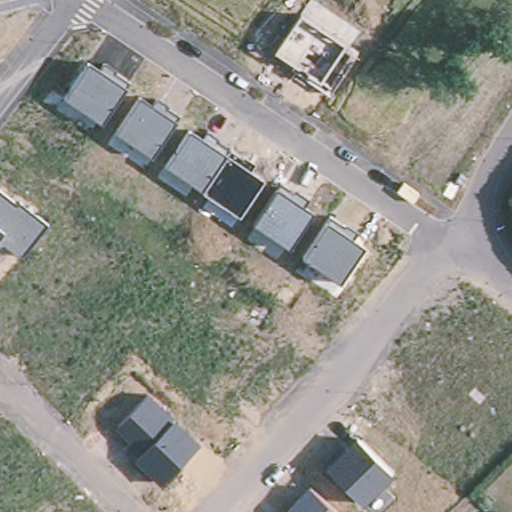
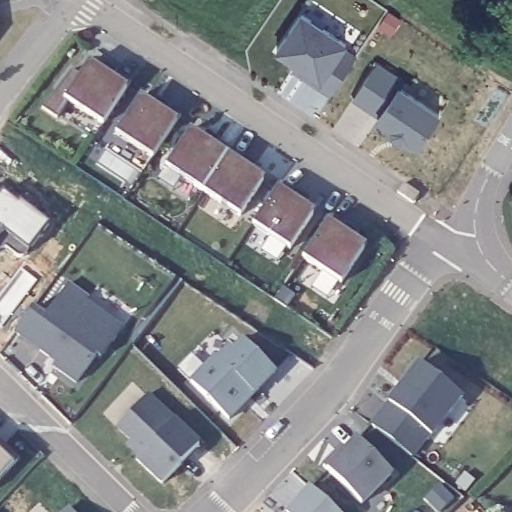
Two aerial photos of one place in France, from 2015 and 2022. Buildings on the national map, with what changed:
new [(346,42),(356,54),(329,96),(291,70),(296,65),(274,51),(301,12),(346,42)]
unchanged [(102,127),(63,101),(88,66),(99,74),(103,67),(104,65),(118,74),(116,76),(130,86),(102,127)]
unchanged [(114,136),(138,101),(151,110),(156,103),(156,101),(169,109),(168,111),(180,120),(152,161),(114,136)]
unchanged [(168,165),(191,130),(204,139),(208,132),(210,130),(223,139),(221,141),(233,150),(232,151),(205,190),(201,188),(168,165)]
unchanged [(205,190),(232,151),(243,158),(245,157),(252,161),(256,164),(251,170),(264,179),(239,215),(201,188),(205,190)]
unchanged [(255,223),(278,189),(279,183),(295,192),(296,190),(309,199),(304,205),(313,210),(289,246),(255,223)]
new [(414,205),(399,195),(404,185),(420,195),(414,205)]
unchanged [(16,202),(18,200),(48,222),(26,251),(23,254),(18,255),(13,251),(4,245),(0,248),(0,189),(16,202)]
unchanged [(364,251),(341,286),(303,261),(330,220),(344,229),(346,226),(359,235),(358,237),(353,244),(364,251)]
new [(124,327),(100,360),(95,356),(76,384),(51,367),(54,363),(13,333),(32,305),(45,315),(69,282),(124,327)]
new [(228,420),(190,383),(216,357),(218,359),(229,347),(233,351),(243,341),(274,372),(253,395),(243,405),(228,420)]
new [(417,363),(459,396),(430,435),(428,433),(411,456),(370,425),(417,363)]
unchanged [(135,460),(138,456),(125,443),(128,440),(117,427),(151,395),(176,419),(175,419),(202,442),(161,484),(135,460)]
unchanged [(328,468),(357,438),(393,475),(364,503),(328,468)]
new [(3,445),(18,460),(0,479),(0,443),(3,445)]
new [(441,483),(454,496),(440,512),(439,512),(427,497),(441,483)]
unchanged [(309,486),(337,512),(286,512),(309,486)]
new [(72,512),(63,512),(68,507),(72,512)]

